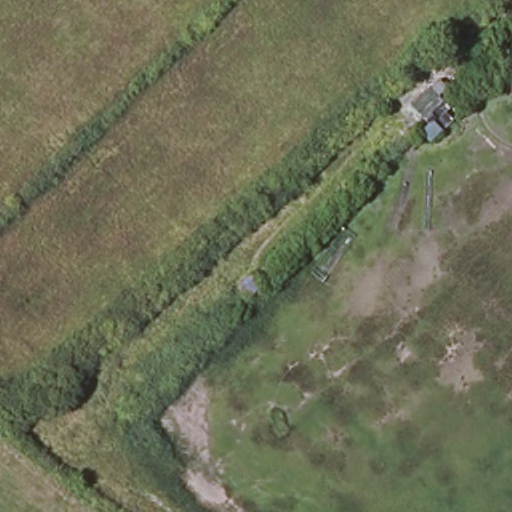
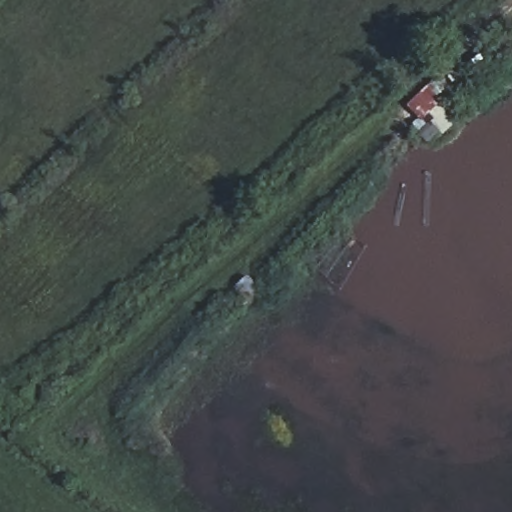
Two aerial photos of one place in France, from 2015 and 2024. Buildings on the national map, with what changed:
unchanged [(457,104),(450,113),(455,120),(431,143),(405,115),(437,84),(457,104)]

